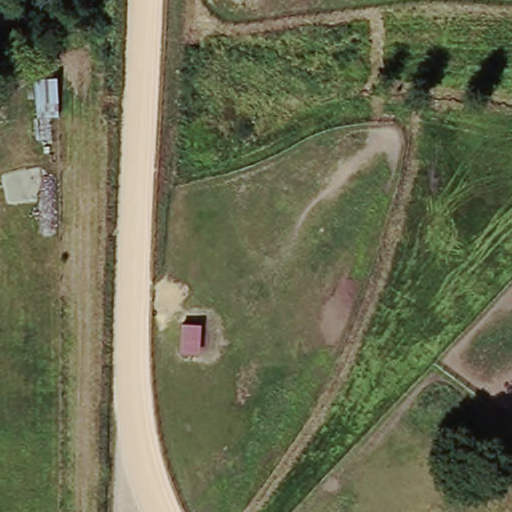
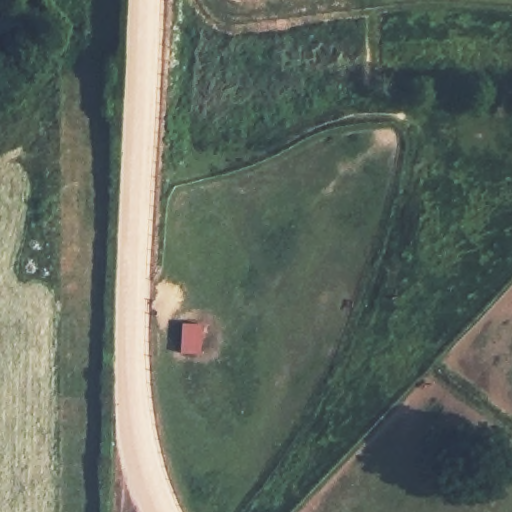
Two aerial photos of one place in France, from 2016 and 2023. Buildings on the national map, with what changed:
unchanged [(202,322),(199,355),(179,353),(181,322),(202,322)]

